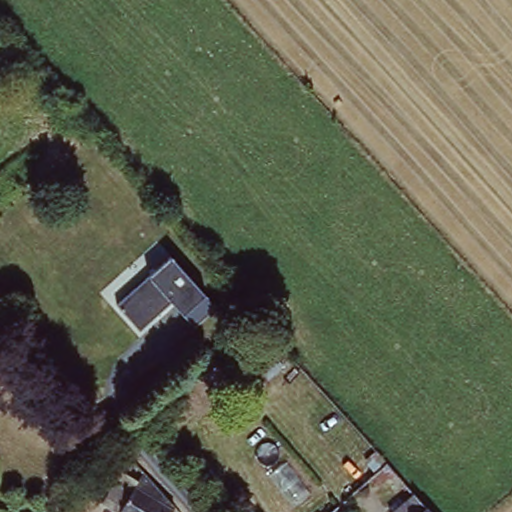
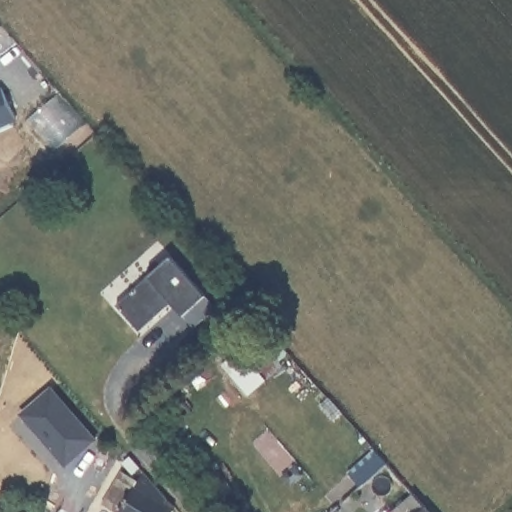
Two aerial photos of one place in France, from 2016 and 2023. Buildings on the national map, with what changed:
new [(0,122),(0,90),(12,117),(0,122)]
unchanged [(148,277),(170,256),(205,295),(216,308),(194,331),(182,316),(170,302),(139,332),(115,307),(148,277)]
new [(61,458),(30,423),(23,413),(30,407),(51,389),(96,440),(74,459),(66,465),(61,458)]
new [(374,453),(384,465),(361,485),(351,473),(374,453)]
unchanged [(128,460),(120,474),(109,468),(117,454),(128,460)]
unchanged [(173,511),(172,512),(114,512),(102,505),(117,479),(132,488),(143,472),(168,500),(164,505),(173,511)]
unchanged [(416,491),(434,512),(391,512),(416,491)]

